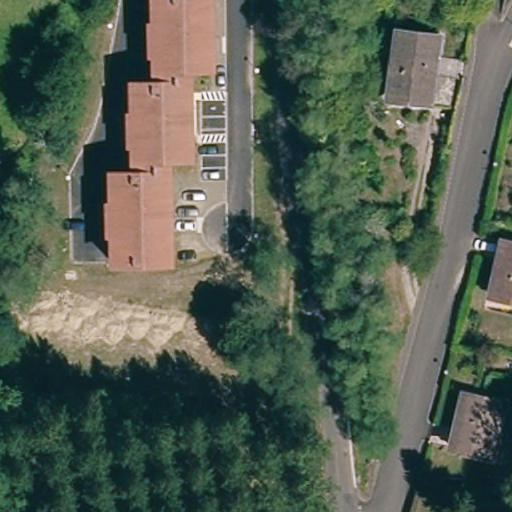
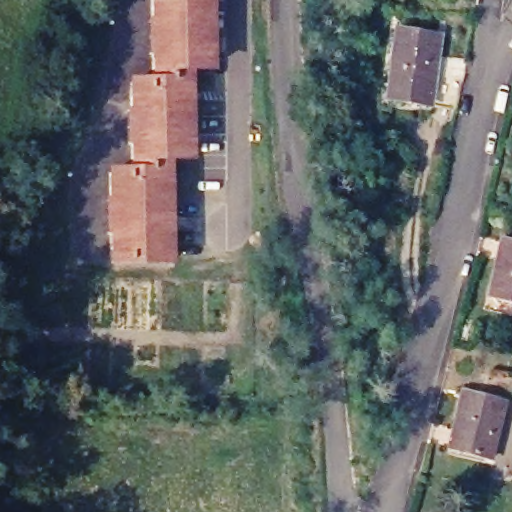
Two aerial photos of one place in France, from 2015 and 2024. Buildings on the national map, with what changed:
unchanged [(214,63),(194,63),(194,152),(172,152),(171,257),(114,258),(113,169),(135,168),(135,77),(156,77),(156,0),(214,0),(214,63)]
unchanged [(444,37),(434,106),(384,98),(394,29),(444,37)]
unchanged [(512,245),(512,304),(486,297),(500,242),(512,245)]
unchanged [(509,407),(496,462),(448,450),(462,393),(509,407)]

